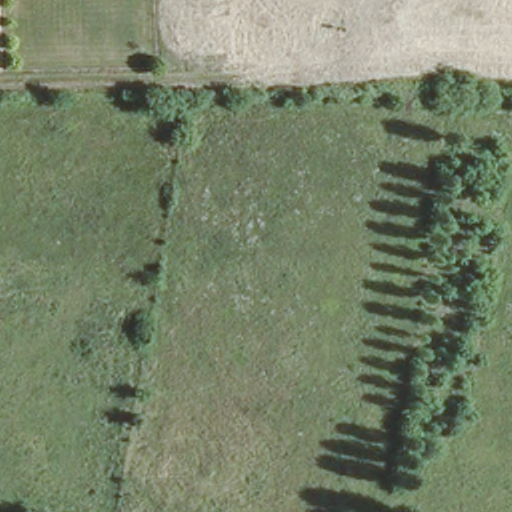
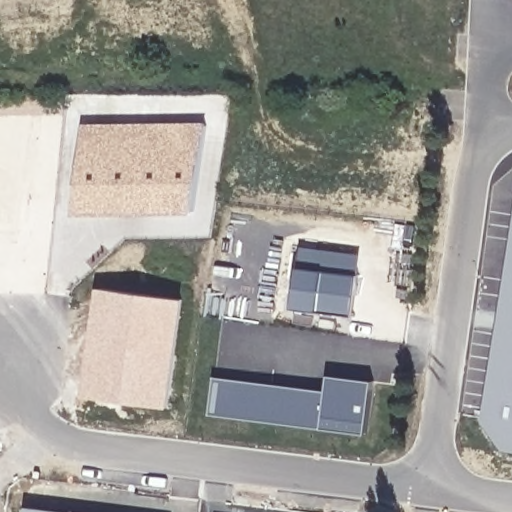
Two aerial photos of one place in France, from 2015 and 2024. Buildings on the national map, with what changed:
new [(214,126),(201,212),(80,214),(89,126),(214,126)]
new [(483,420),(512,233),(512,451),(508,451),(483,420)]
new [(297,268),(294,268),(297,245),(359,254),(354,275),(359,275),(352,315),(317,308),(317,311),(291,308),(297,268)]
new [(184,297),(169,406),(81,395),(96,288),(184,297)]
new [(330,392),(333,376),(380,382),(372,437),(213,416),(219,377),(330,392)]
new [(69,512),(24,512),(25,506),(69,512)]

